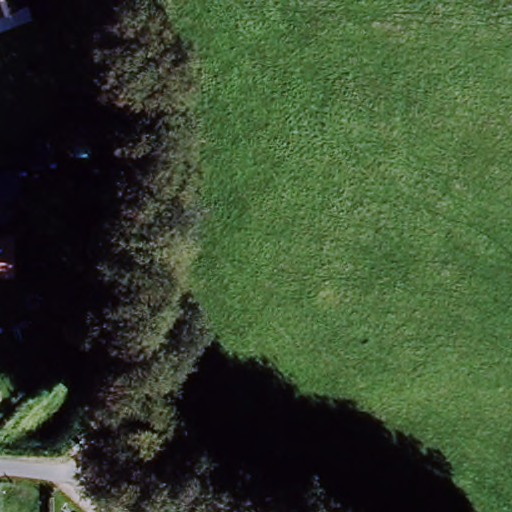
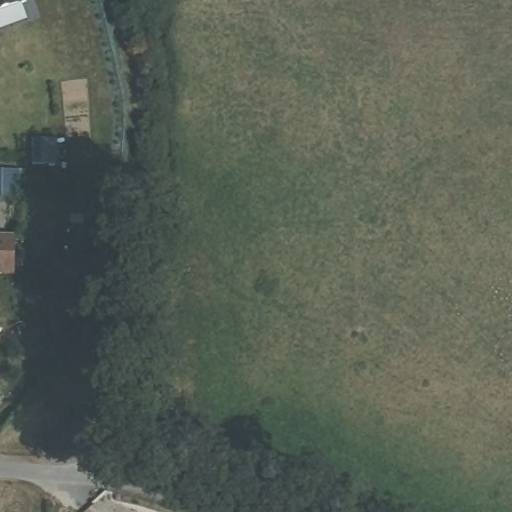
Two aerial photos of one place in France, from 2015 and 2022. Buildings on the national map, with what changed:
unchanged [(25,0),(27,3),(0,11),(0,0),(25,0)]
unchanged [(14,236),(14,278),(0,278),(0,235),(14,236)]

